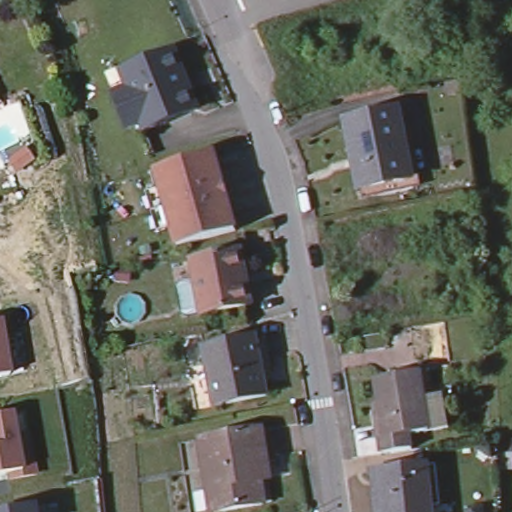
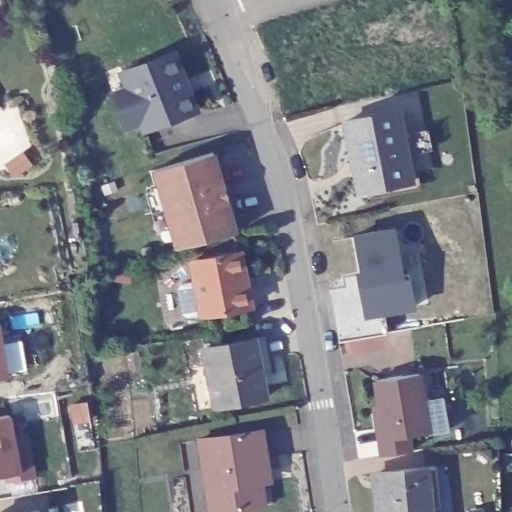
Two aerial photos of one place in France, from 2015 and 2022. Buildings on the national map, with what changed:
unchanged [(128,85),(123,72),(160,59),(173,53),(177,61),(182,74),(187,88),(196,110),(145,130),(143,122),(128,129),(120,106),(115,94),(129,88),(128,85)]
unchanged [(355,155),(350,156),(342,119),(395,107),(409,175),(410,185),(365,194),(363,185),(355,155)]
unchanged [(208,151),(218,185),(220,184),(224,197),(222,197),(231,231),(173,246),(152,169),(208,151)]
new [(395,226),(405,274),(411,273),(417,309),(364,318),(355,271),(360,270),(353,233),(395,226)]
unchanged [(197,278),(193,260),(242,251),(252,305),(203,313),(184,317),(177,283),(197,278)]
unchanged [(0,373),(0,324),(7,372),(0,373)]
unchanged [(203,352),(254,341),(266,398),(215,409),(203,352)]
unchanged [(377,439),(367,380),(411,373),(420,432),(402,435),(404,448),(374,453),(371,440),(377,439)]
unchanged [(15,437),(30,436),(35,475),(7,481),(5,471),(0,472),(0,416),(12,413),(15,437)]
unchanged [(262,427),(275,501),(218,512),(207,512),(196,439),(262,427)]
unchanged [(427,466),(432,512),(387,512),(382,468),(427,466)]
unchanged [(42,512),(0,512),(0,511),(41,505),(42,512)]

